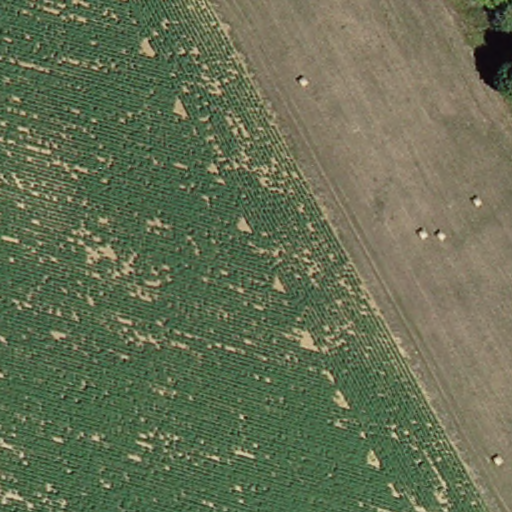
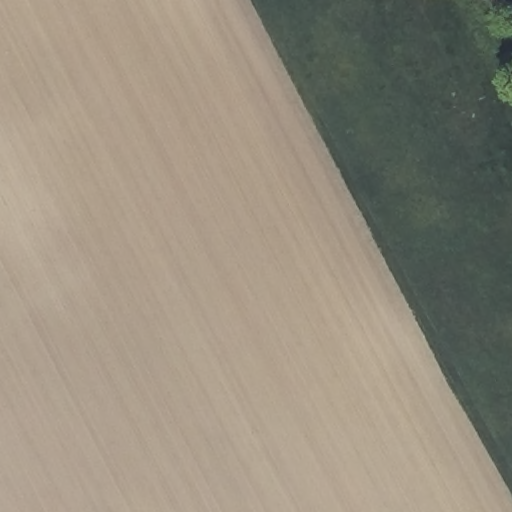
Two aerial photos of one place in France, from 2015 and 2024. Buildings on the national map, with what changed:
[]

